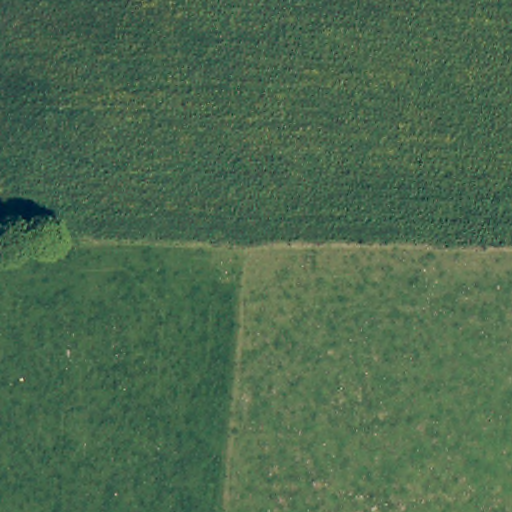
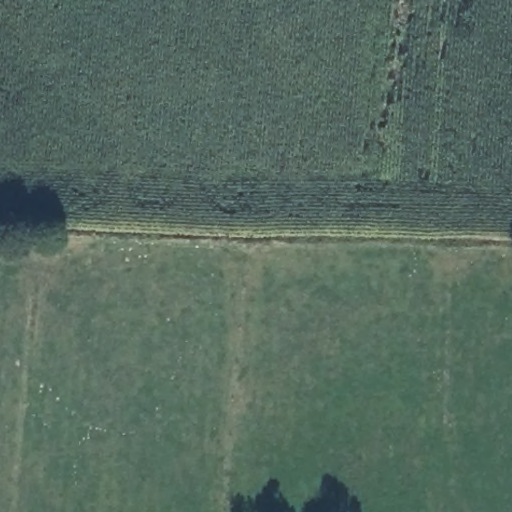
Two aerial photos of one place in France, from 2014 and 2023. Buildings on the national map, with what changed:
[]

